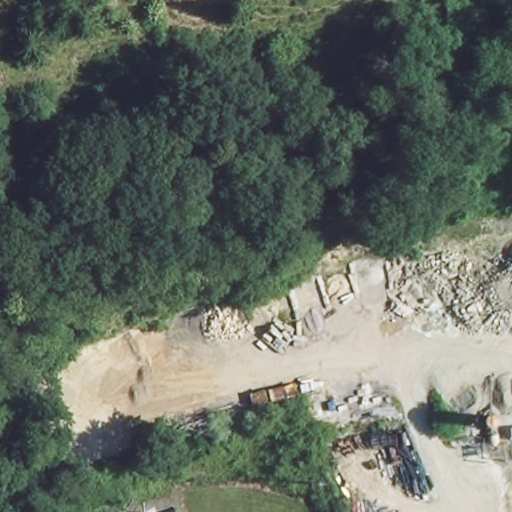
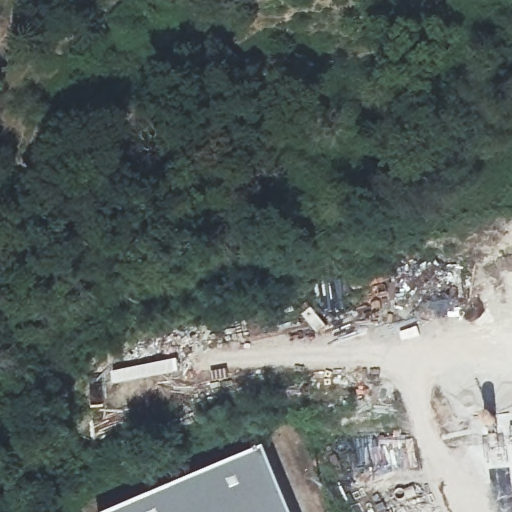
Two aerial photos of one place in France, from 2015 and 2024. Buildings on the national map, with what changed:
new [(294,512),(114,512),(267,448),(294,512)]

